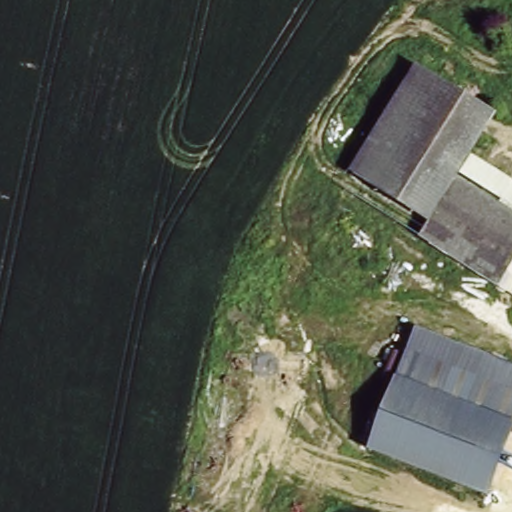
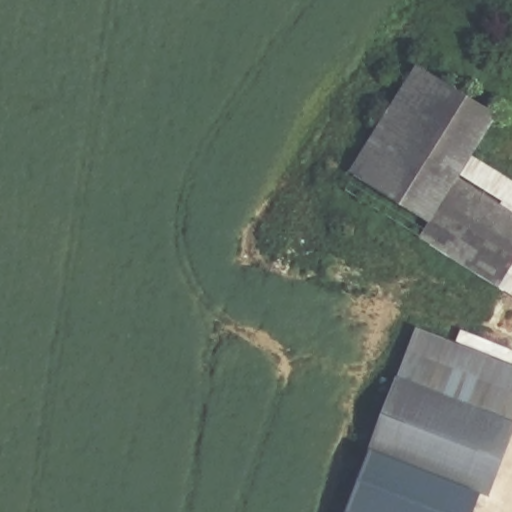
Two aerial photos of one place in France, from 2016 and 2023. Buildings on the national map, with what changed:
unchanged [(355,169),(420,66),(498,116),(460,175),(432,220),(355,169)]
unchanged [(512,212),(512,262),(498,285),(423,234),(432,220),(460,175),(512,212)]
unchanged [(418,322),(512,359),(512,419),(397,376),(418,322)]
unchanged [(512,438),(492,493),(370,451),(397,376),(512,419),(512,438)]
new [(370,451),(480,490),(471,512),(346,512),(370,451)]

